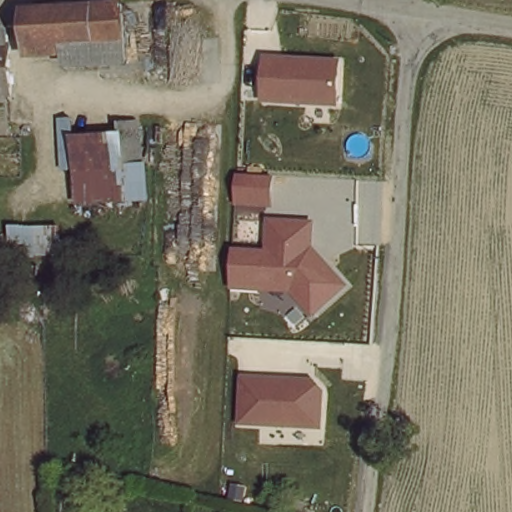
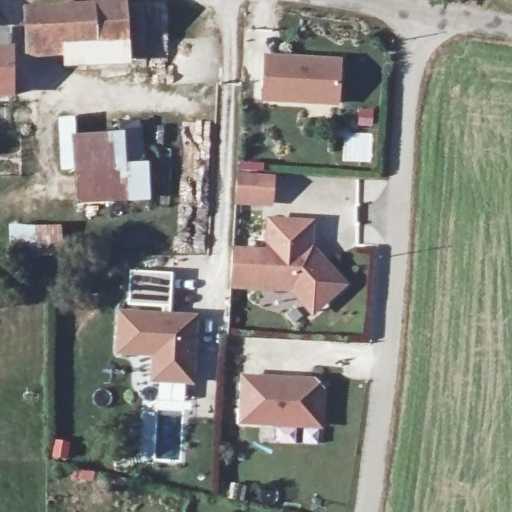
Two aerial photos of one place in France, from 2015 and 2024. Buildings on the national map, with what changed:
unchanged [(123,62),(60,61),(59,39),(23,38),(23,0),(106,0),(120,0),(123,62)]
unchanged [(341,60),(338,106),(259,101),(264,54),(341,60)]
unchanged [(143,116),(149,198),(73,200),(69,169),(58,168),(56,115),(74,114),(76,134),(115,131),(116,116),(143,116)]
unchanged [(274,175),(271,207),(234,206),(238,173),(274,175)]
unchanged [(266,250),(268,218),(315,221),(313,249),(348,285),(312,316),(292,291),(231,288),(233,248),(266,250)]
unchanged [(63,222),(64,235),(80,236),(81,249),(13,255),(10,223),(63,222)]
new [(118,308),(193,312),(189,377),(149,375),(151,349),(115,347),(118,308)]
unchanged [(311,377),(324,390),(321,428),(238,423),(241,374),(311,377)]

